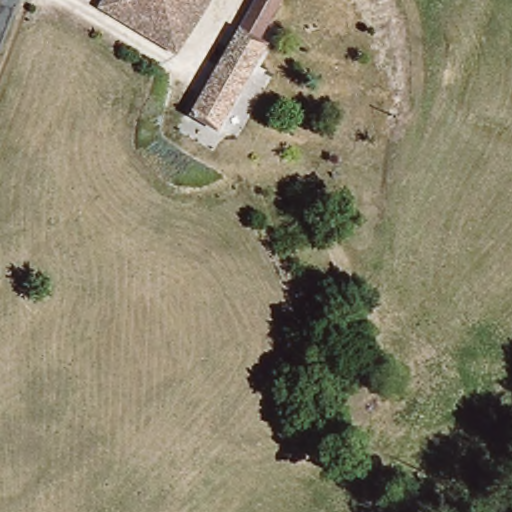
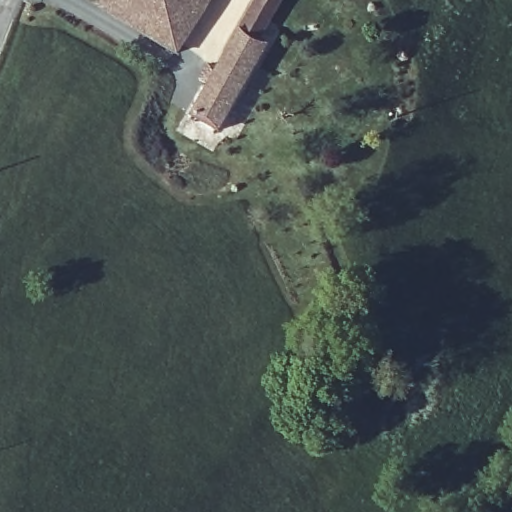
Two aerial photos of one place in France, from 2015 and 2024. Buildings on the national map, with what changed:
unchanged [(173,54),(100,10),(106,0),(205,0),(173,54)]
unchanged [(256,36),(265,40),(238,95),(210,81),(213,76),(249,7),(252,0),(273,0),(256,36)]

